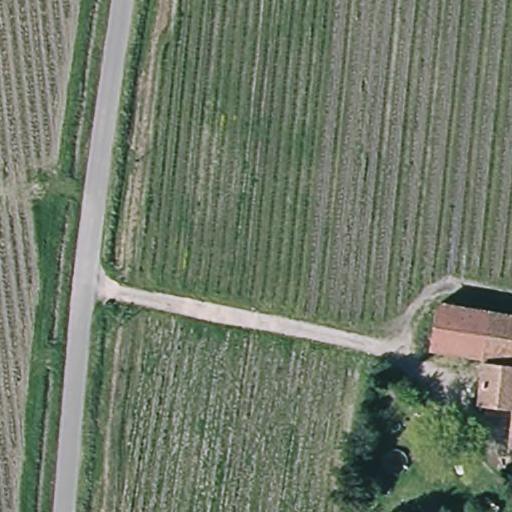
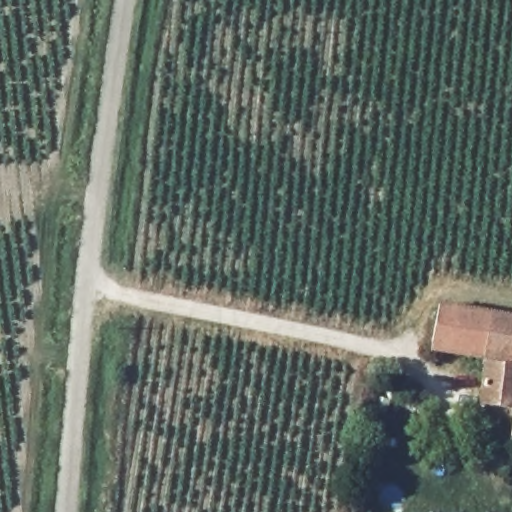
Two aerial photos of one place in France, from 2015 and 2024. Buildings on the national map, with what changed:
unchanged [(509,411),(476,405),(480,361),(428,352),(437,304),(512,316),(512,470),(503,468),(509,411)]

